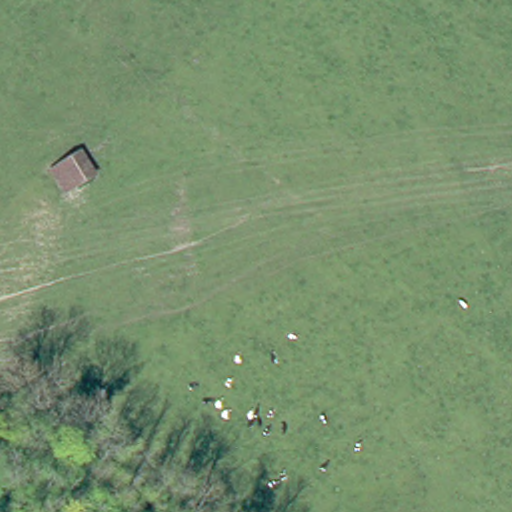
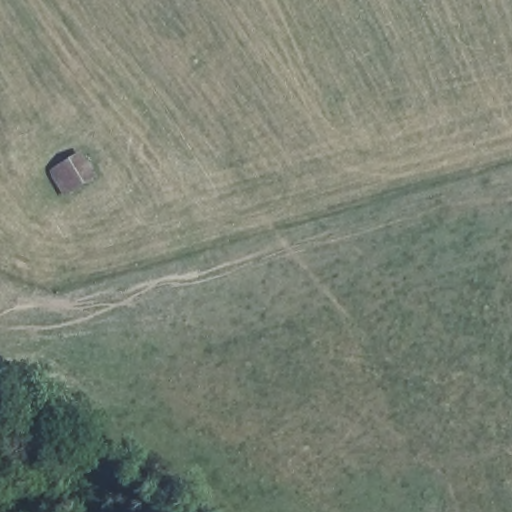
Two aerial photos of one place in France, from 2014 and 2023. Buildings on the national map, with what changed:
unchanged [(100,174),(70,193),(57,166),(85,149),(100,174)]

